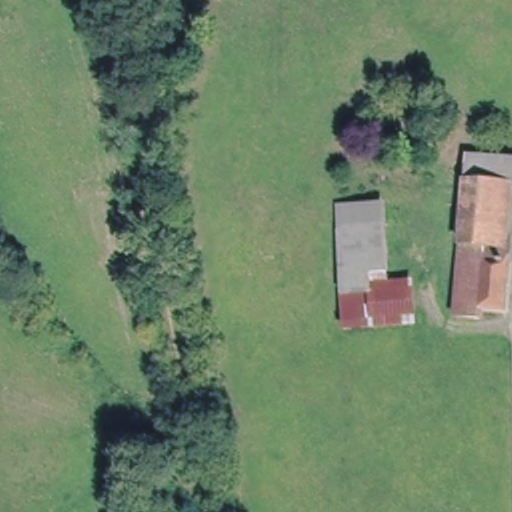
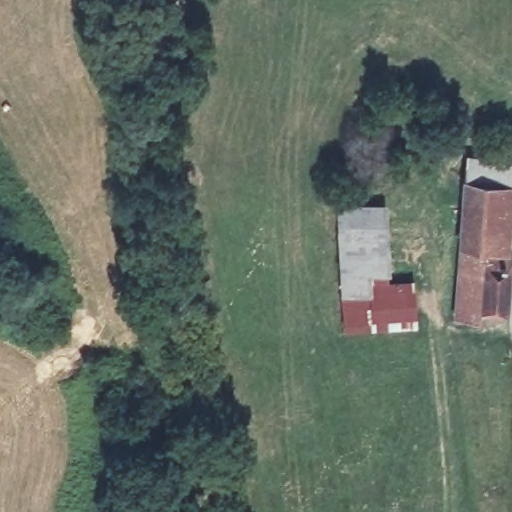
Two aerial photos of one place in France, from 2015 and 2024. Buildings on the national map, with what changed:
unchanged [(473,313),(451,309),(465,174),(485,172),(487,158),(512,159),(512,175),(507,175),(500,236),(506,237),(497,306),(475,303),(473,313)]
unchanged [(343,282),(337,206),(383,204),(387,282),(345,281),(343,282)]
unchanged [(387,282),(414,282),(415,323),(345,326),(345,290),(345,281),(387,282)]
unchanged [(164,505),(187,506),(187,512),(164,512),(164,505)]

